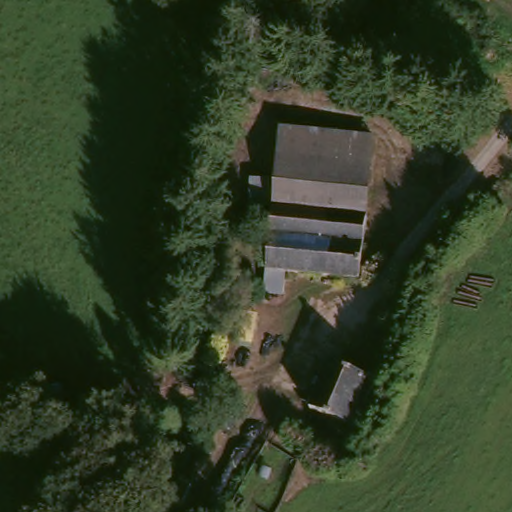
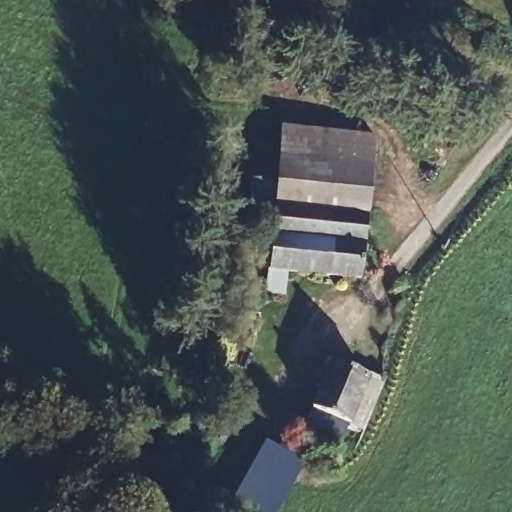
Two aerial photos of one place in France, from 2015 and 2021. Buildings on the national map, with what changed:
unchanged [(278,202),(289,125),(378,133),(364,215),(278,202)]
unchanged [(262,281),(264,257),(273,202),(278,202),(364,215),(356,269),(279,260),(275,282),(262,281)]
unchanged [(325,365),(365,380),(348,430),(308,408),(325,365)]
new [(304,462),(275,512),(226,512),(221,509),(265,440),(304,462)]

